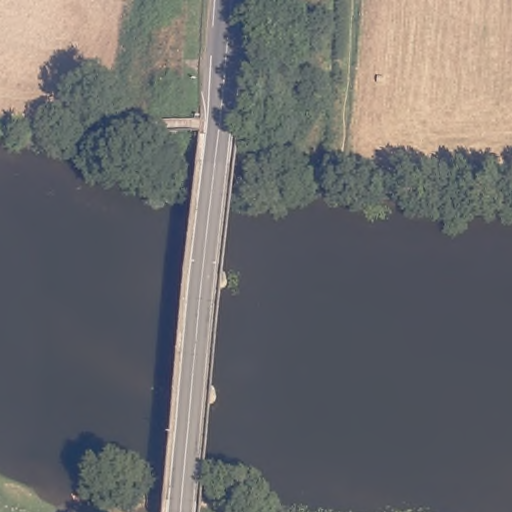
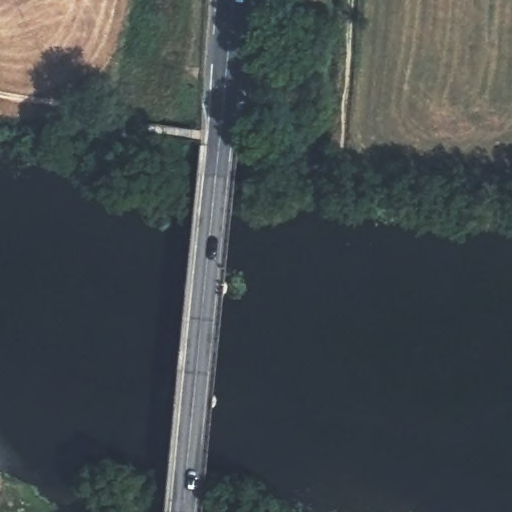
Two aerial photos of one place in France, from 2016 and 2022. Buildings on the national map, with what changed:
[]

